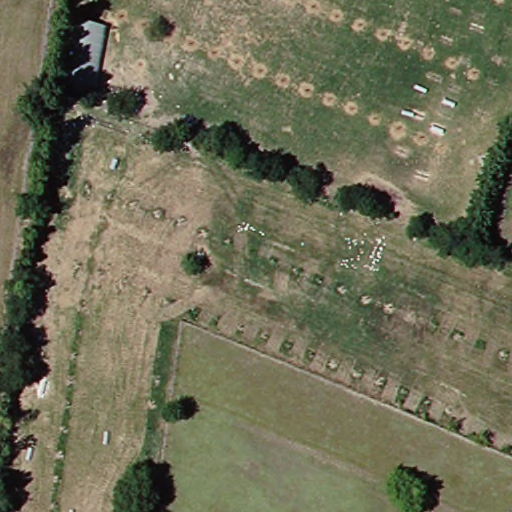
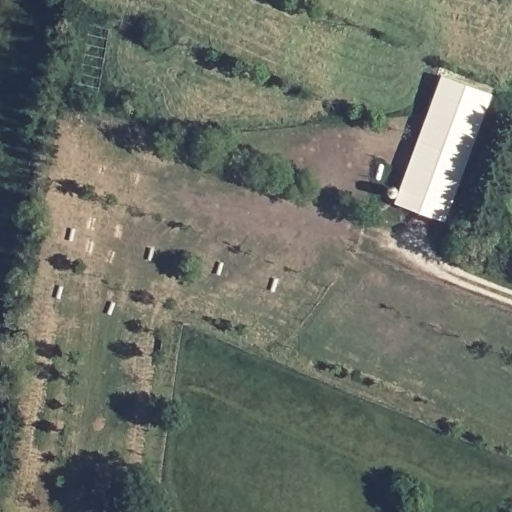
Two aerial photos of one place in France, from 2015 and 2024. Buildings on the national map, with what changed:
demolished [(118,25),(106,101),(72,91),(83,21),(118,25)]
new [(441,75),(492,94),(445,222),(394,203),(441,75)]

